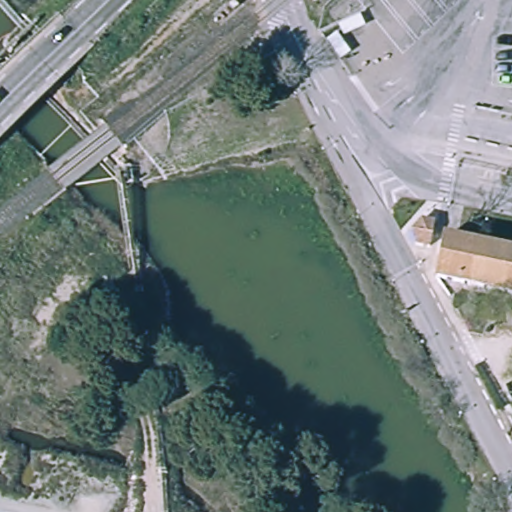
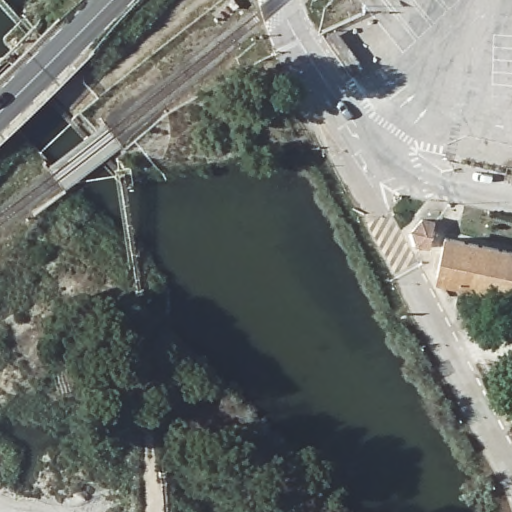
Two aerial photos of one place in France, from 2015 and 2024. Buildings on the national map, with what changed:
unchanged [(239,6),(234,11),(229,5),(234,1),(239,6)]
unchanged [(512,289),(437,273),(446,233),(512,247),(512,289)]

